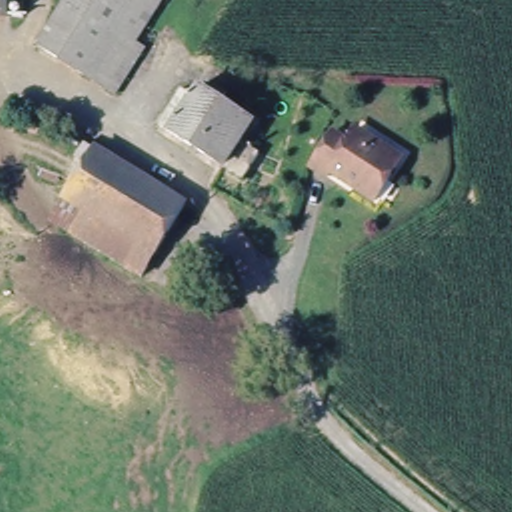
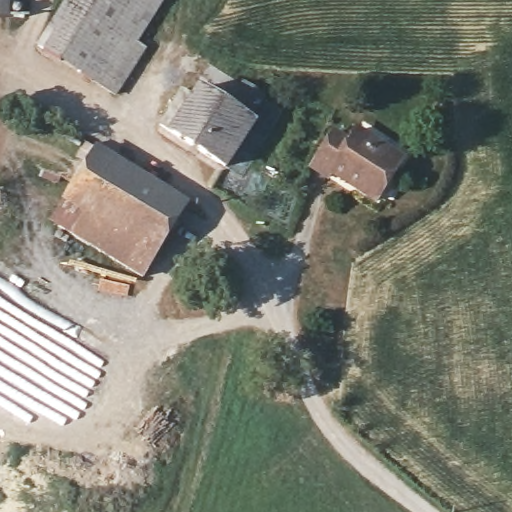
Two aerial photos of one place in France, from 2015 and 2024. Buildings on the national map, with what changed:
unchanged [(114,93),(39,38),(68,0),(169,0),(137,43),(148,53),(114,93)]
unchanged [(243,186),(163,127),(187,96),(199,105),(207,94),(215,99),(221,91),(231,99),(224,109),(253,131),(244,142),(264,157),(243,186)]
unchanged [(336,128),(351,136),(359,125),(402,157),(371,207),(314,169),(336,128)]
unchanged [(81,209),(68,199),(90,166),(79,157),(91,141),(188,205),(137,280),(65,232),(81,209)]

